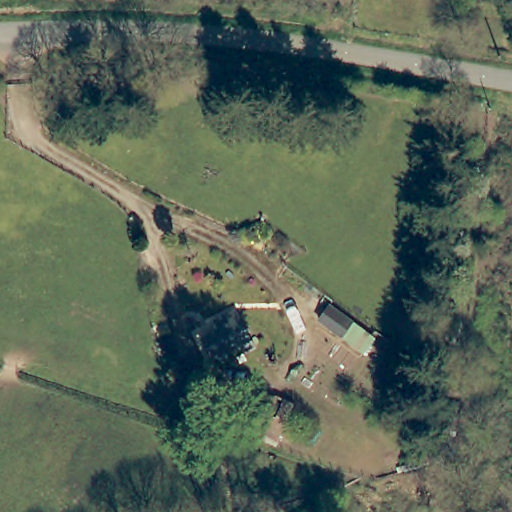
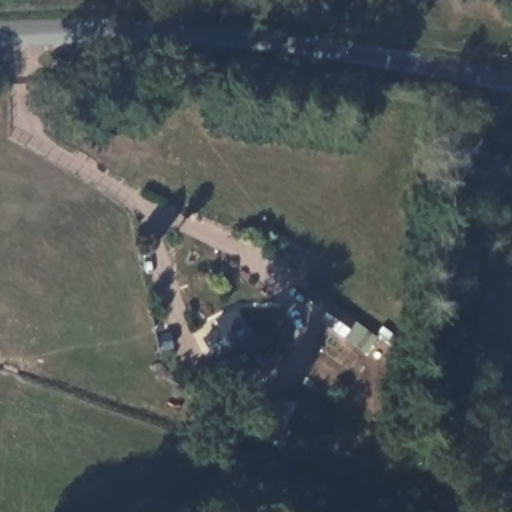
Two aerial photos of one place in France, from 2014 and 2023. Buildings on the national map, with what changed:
unchanged [(245,328),(236,333),(242,342),(219,357),(207,339),(224,329),(217,320),(235,310),(245,328)]

